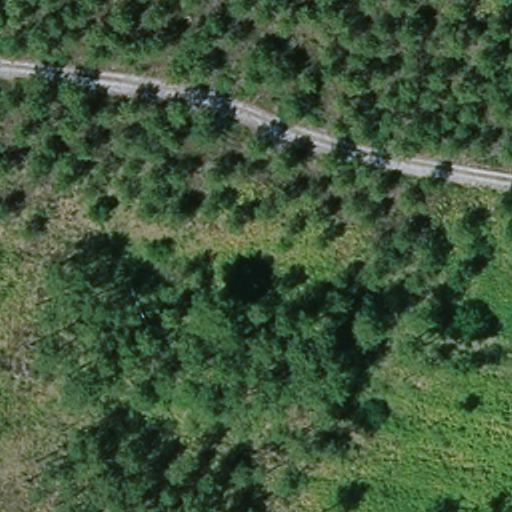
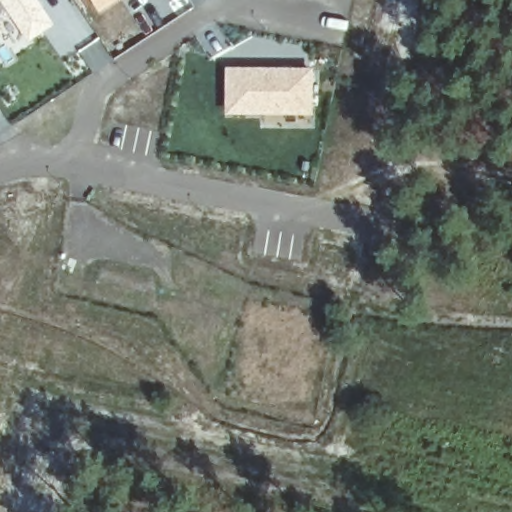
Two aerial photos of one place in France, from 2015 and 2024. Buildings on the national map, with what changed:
new [(27,43),(1,5),(0,5),(0,0),(39,0),(55,25),(27,43)]
new [(118,0),(100,12),(92,0),(118,0)]
new [(5,33),(0,36),(0,24),(5,33)]
new [(314,69),(314,116),(226,115),(227,69),(314,69)]

